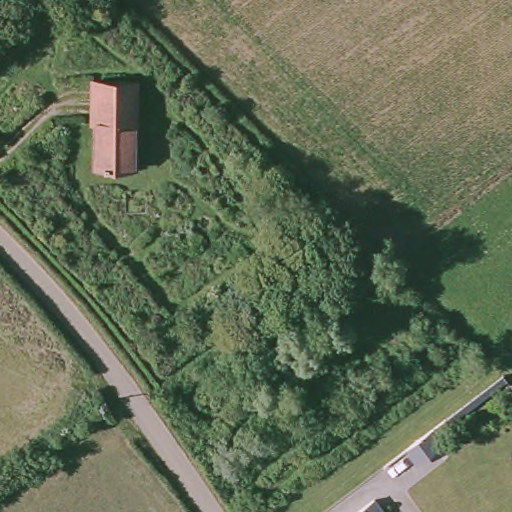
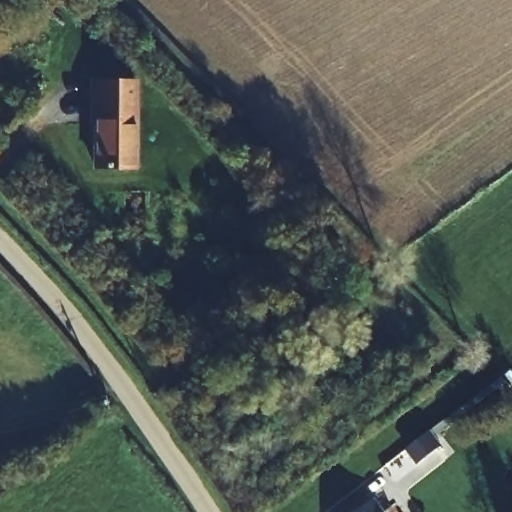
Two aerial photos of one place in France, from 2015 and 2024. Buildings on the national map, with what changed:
unchanged [(100,168),(100,135),(90,134),(90,89),(137,87),(139,167),(100,168)]
unchanged [(398,510),(394,512),(365,512),(389,497),(398,510)]

